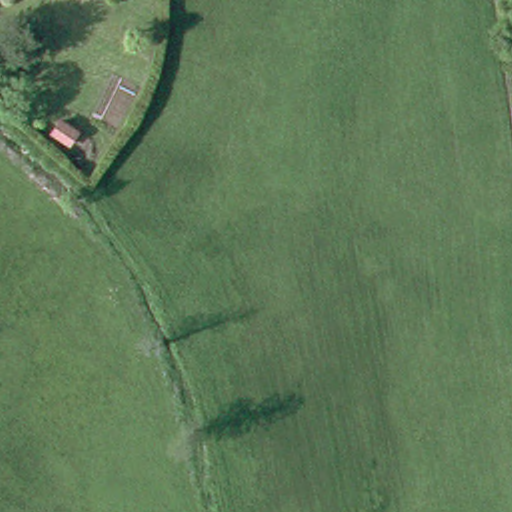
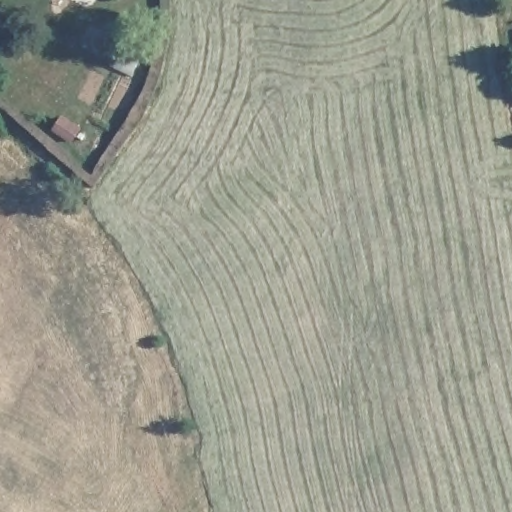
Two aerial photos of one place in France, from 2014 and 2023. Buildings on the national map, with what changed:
[]

